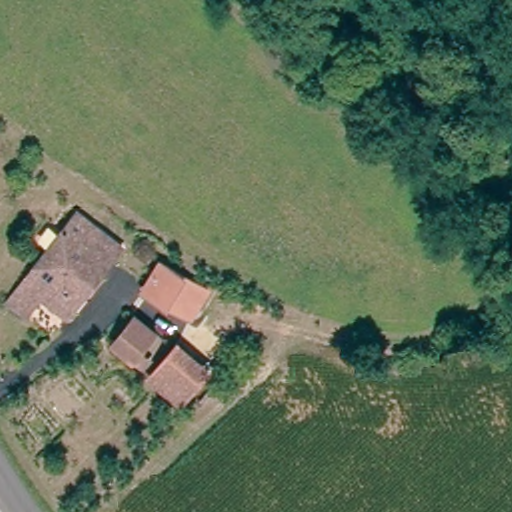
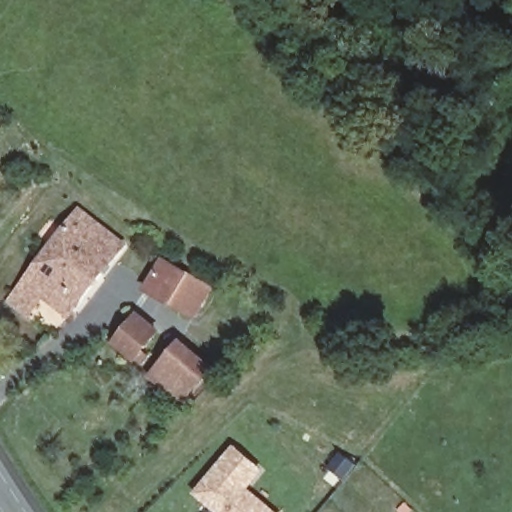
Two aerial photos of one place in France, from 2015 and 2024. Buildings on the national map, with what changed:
unchanged [(80,207),(129,243),(68,312),(45,293),(27,316),(7,298),(80,207)]
unchanged [(194,315),(180,306),(151,288),(166,263),(195,280),(210,289),(194,315)]
unchanged [(134,310),(160,328),(149,345),(154,348),(146,360),(114,338),(134,310)]
unchanged [(176,342),(206,369),(181,397),(151,372),(176,342)]
new [(247,488),(277,512),(213,512),(192,493),(233,445),(263,470),(247,488)]

